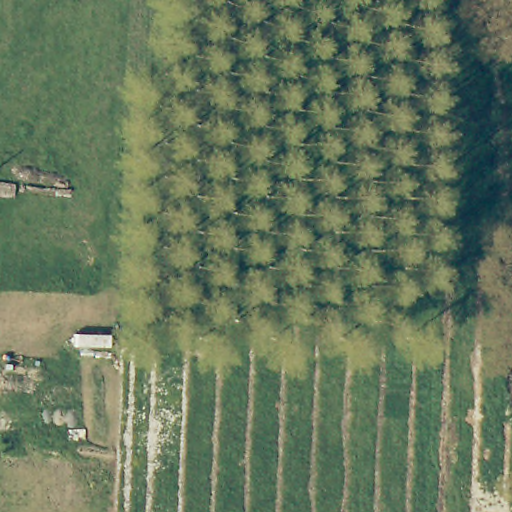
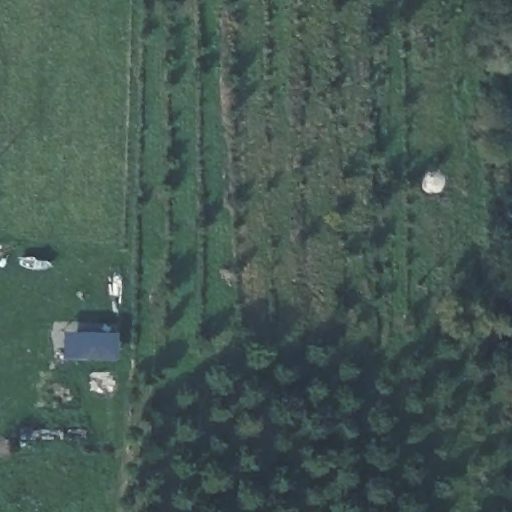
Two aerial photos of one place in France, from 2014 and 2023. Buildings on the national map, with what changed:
new [(118,360),(61,358),(61,331),(116,332),(118,360)]

